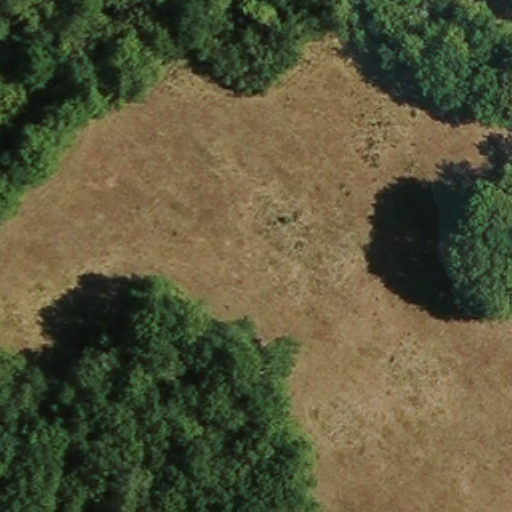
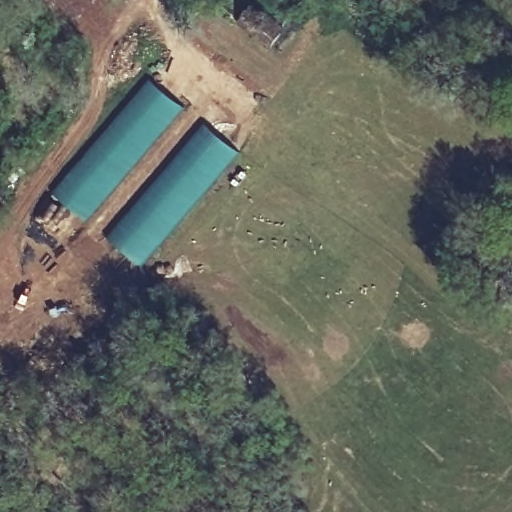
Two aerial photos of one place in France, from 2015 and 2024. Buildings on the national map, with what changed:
unchanged [(267,2),(299,23),(288,42),(254,22),(267,2)]
new [(87,222),(53,193),(151,79),(186,107),(87,222)]
new [(144,267),(108,239),(210,122),(243,150),(144,267)]

